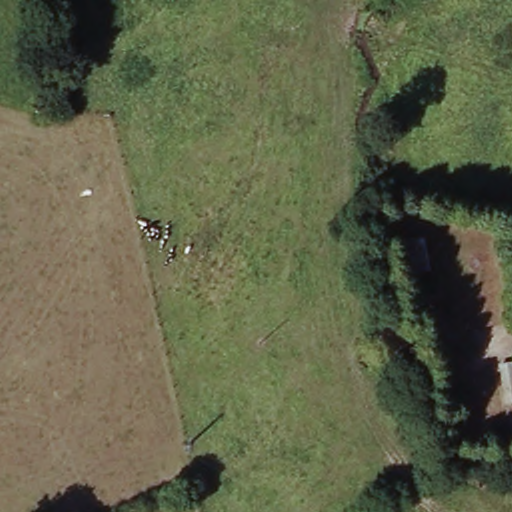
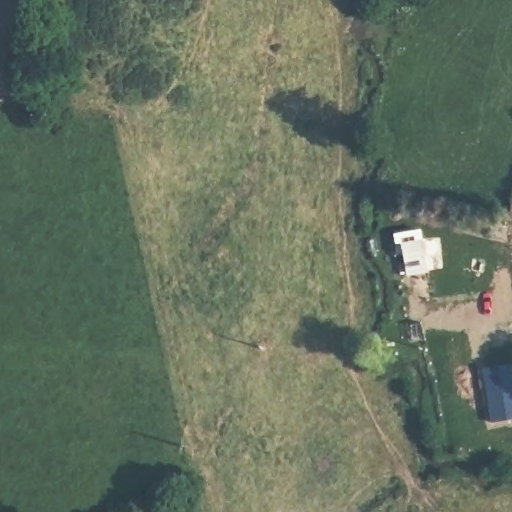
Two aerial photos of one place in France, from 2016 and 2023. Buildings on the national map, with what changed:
unchanged [(512,363),(512,392),(503,394),(498,366),(512,363)]

